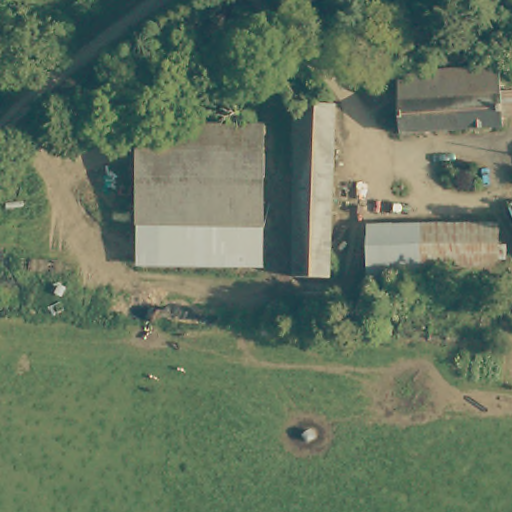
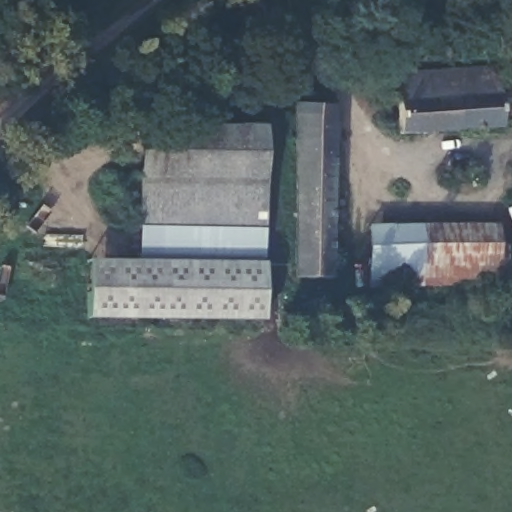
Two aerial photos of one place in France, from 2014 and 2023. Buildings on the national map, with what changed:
unchanged [(397,71),(494,65),(499,126),(400,134),(396,77),(396,71),(397,71)]
unchanged [(302,105),(337,105),(332,280),(300,281),(300,279),(302,139),(302,105)]
unchanged [(138,124),(268,125),(266,271),(139,269),(138,124)]
unchanged [(501,265),(512,266),(512,285),(511,290),(371,292),(370,228),(501,227),(501,265)]
new [(87,260),(139,260),(139,269),(266,271),(263,321),(86,320),(87,260)]

